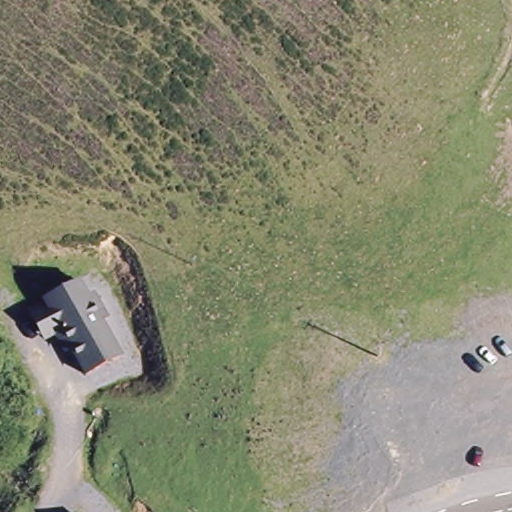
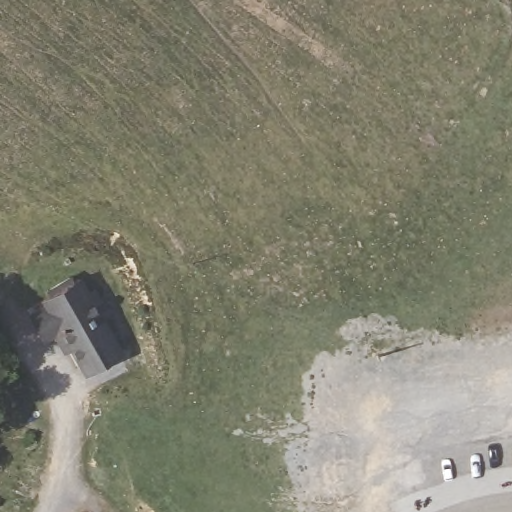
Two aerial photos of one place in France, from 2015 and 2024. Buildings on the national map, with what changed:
unchanged [(86,377),(60,338),(41,346),(20,304),(75,273),(125,355),(86,377)]

